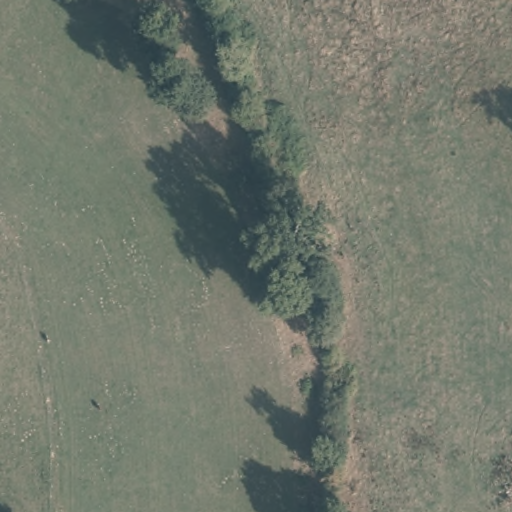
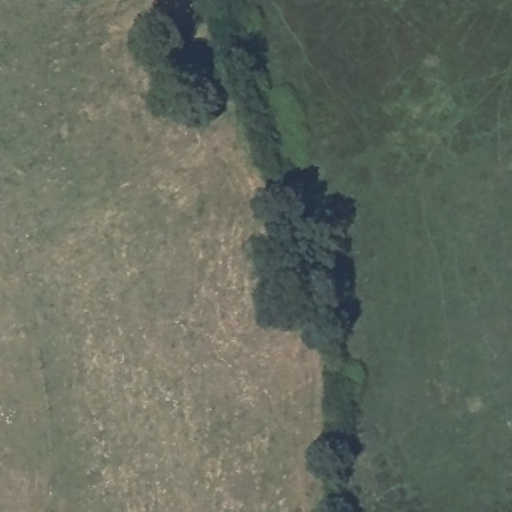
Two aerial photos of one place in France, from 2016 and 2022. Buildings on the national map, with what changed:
[]

